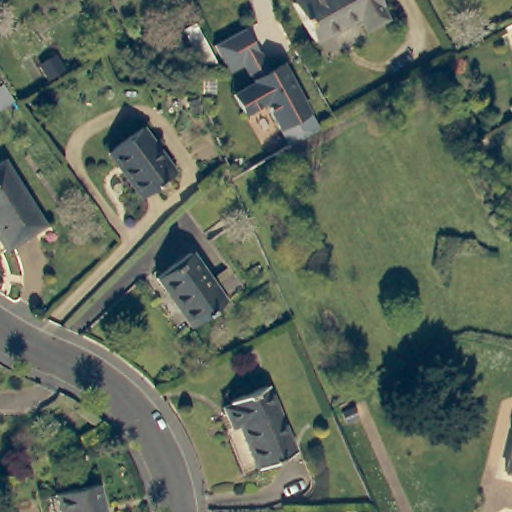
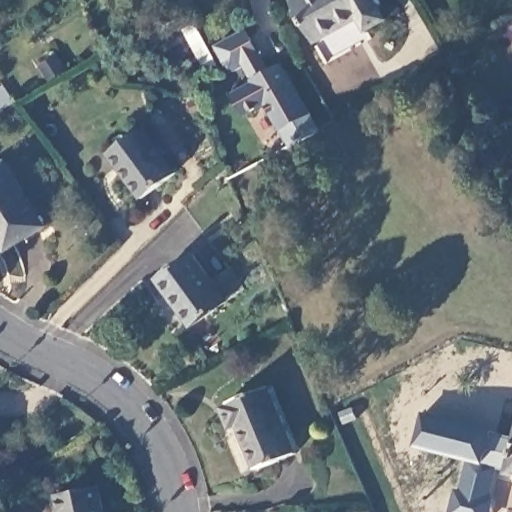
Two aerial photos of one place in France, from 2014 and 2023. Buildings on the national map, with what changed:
unchanged [(380,0),(382,4),(379,5),(386,20),(366,31),(358,19),(316,43),(294,4),(301,0),(380,0)]
unchanged [(253,77),(247,67),(231,76),(217,49),(245,33),(269,74),(270,76),(256,84),(253,77)]
unchanged [(319,132),(291,149),(267,106),(246,119),(235,99),(256,88),(254,85),(256,84),(270,76),(273,74),(282,69),(283,70),(319,132)]
unchanged [(142,128),(176,170),(142,197),(109,154),(142,128)]
unchanged [(4,164),(46,227),(8,251),(0,239),(0,168),(4,164)]
unchanged [(188,257),(224,302),(193,327),(190,323),(193,320),(171,294),(169,297),(157,280),(188,257)]
unchanged [(229,407),(228,404),(268,388),(295,454),(255,471),(237,427),(230,430),(221,410),(229,407)]
new [(496,468),(489,497),(494,498),(490,512),(447,512),(453,488),(459,489),(469,461),(414,448),(424,411),(512,436),(512,456),(509,469),(496,468)]
unchanged [(512,456),(512,470),(509,469),(512,456)]
unchanged [(100,483),(108,512),(63,512),(58,495),(100,483)]

